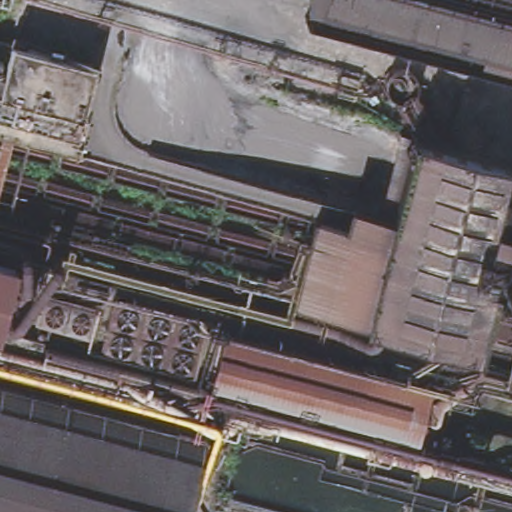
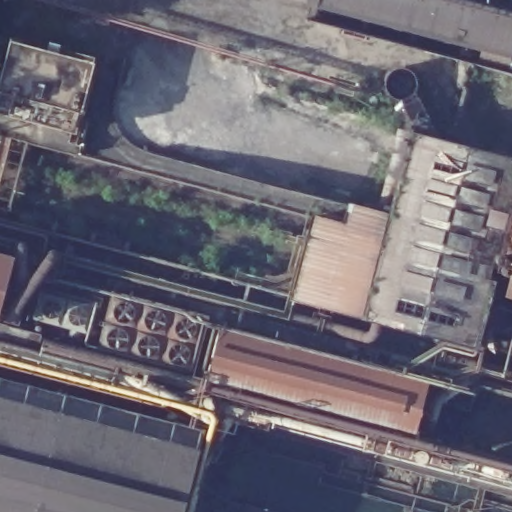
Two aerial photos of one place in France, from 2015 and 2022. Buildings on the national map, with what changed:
unchanged [(305,210),(352,223),(412,26),(312,0),(461,0),(512,13),(512,176),(416,152),(359,348),(473,377),(460,440),(212,381),(197,440),(15,393),(60,233),(284,292),(305,210)]
unchanged [(6,58),(10,43),(94,65),(77,132),(10,117),(0,114),(0,57),(6,58)]
unchanged [(512,205),(473,377),(359,348),(416,152),(512,176),(512,205)]
unchanged [(14,256),(0,309),(0,252),(14,256)]
unchanged [(15,393),(197,440),(178,512),(0,512),(0,388),(15,393)]

